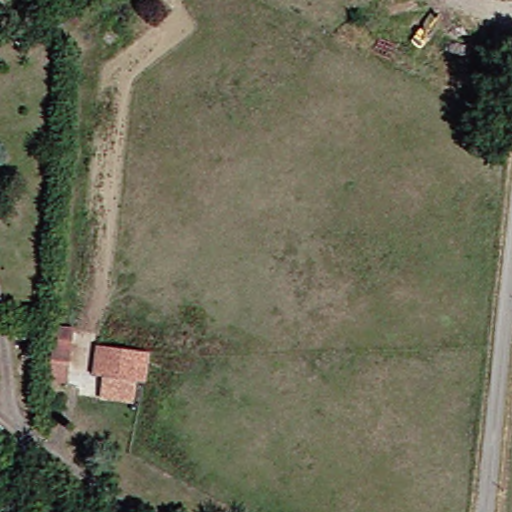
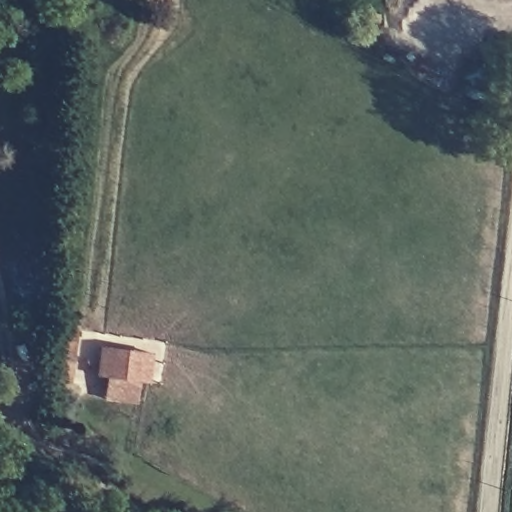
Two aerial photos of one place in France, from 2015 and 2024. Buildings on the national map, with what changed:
unchanged [(71,388),(48,385),(55,327),(76,328),(71,388)]
unchanged [(96,376),(100,346),(152,352),(150,383),(139,382),(135,404),(103,400),(106,377),(96,376)]

